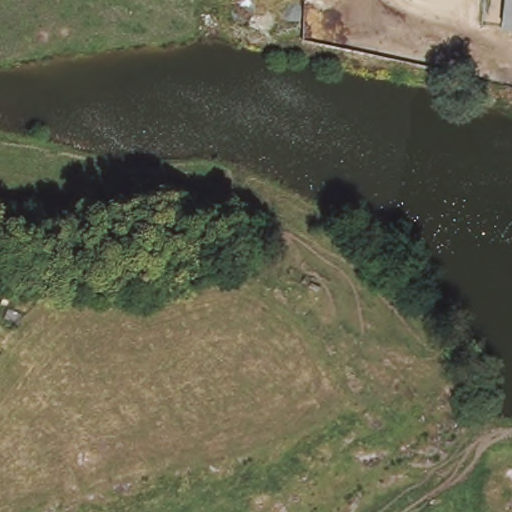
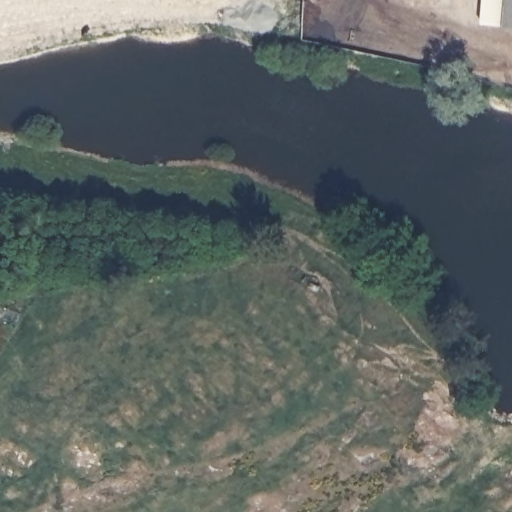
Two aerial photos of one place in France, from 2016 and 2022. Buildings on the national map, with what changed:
unchanged [(505,31),(507,0),(512,0),(512,31),(505,31)]

